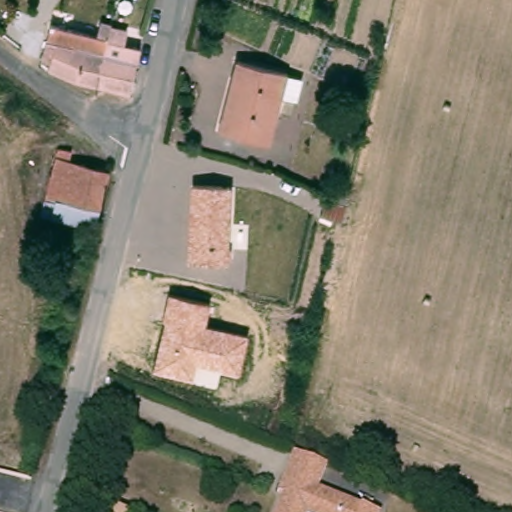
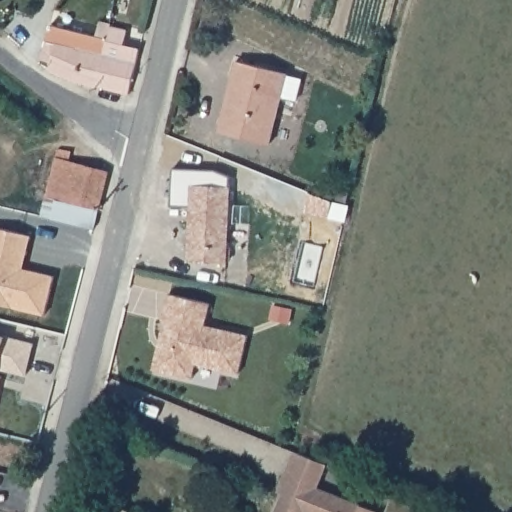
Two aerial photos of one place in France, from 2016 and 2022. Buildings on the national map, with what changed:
unchanged [(93,40),(97,25),(107,28),(107,31),(94,91),(72,86),(45,74),(48,61),(39,58),(42,46),(47,29),(93,40)]
unchanged [(94,91),(107,31),(125,34),(121,49),(137,52),(126,98),(94,91)]
unchanged [(215,111),(217,113),(226,81),(223,81),(228,59),(280,71),(279,73),(294,76),(288,99),(273,95),(262,143),(210,130),(215,111)]
unchanged [(49,222),(38,220),(42,201),(55,152),(67,156),(65,165),(106,175),(97,214),(92,233),(49,222)]
unchanged [(190,188),(227,190),(224,266),(186,265),(190,188)]
new [(29,240),(24,259),(21,273),(52,281),(42,320),(0,309),(0,233),(29,240)]
unchanged [(166,322),(162,321),(169,295),(210,305),(206,326),(248,336),(241,374),(195,364),(192,378),(155,368),(166,322)]
new [(31,348),(24,380),(0,374),(0,340),(31,348)]
unchanged [(330,462),(321,485),(383,510),(383,512),(277,512),(286,491),(281,489),(286,477),(297,449),(311,455),(330,462)]
unchanged [(109,500),(132,510),(131,512),(103,512),(109,500)]

